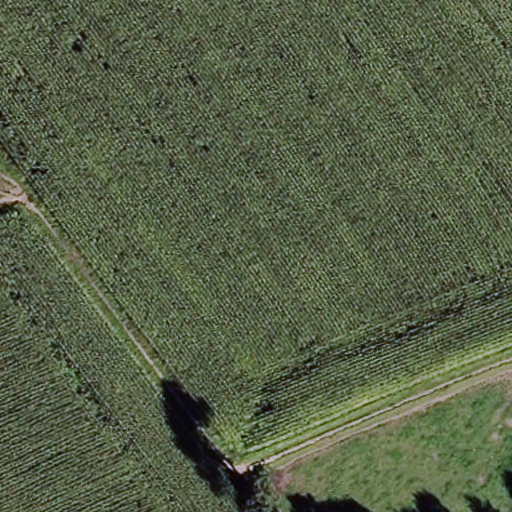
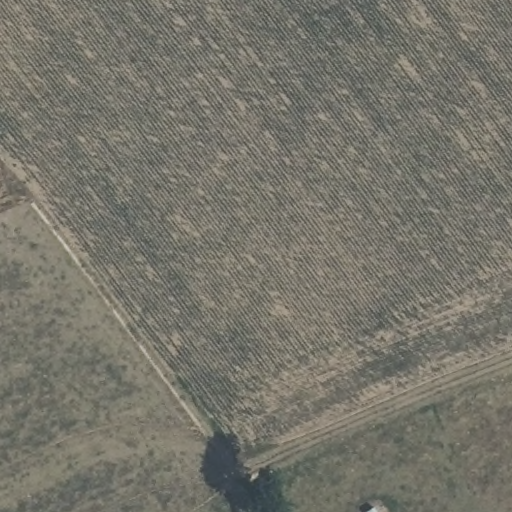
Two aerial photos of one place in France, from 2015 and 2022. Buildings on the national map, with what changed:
[]

